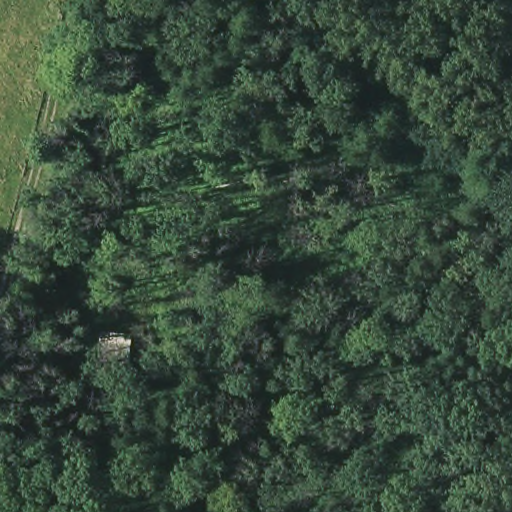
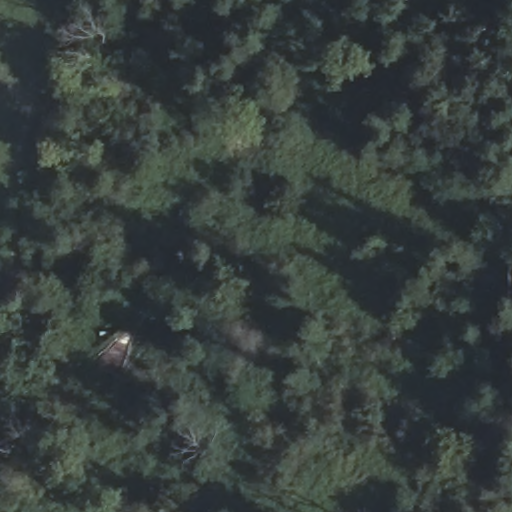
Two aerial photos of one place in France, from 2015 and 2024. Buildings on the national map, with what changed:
unchanged [(115,396),(100,386),(110,366),(130,371),(115,396)]

